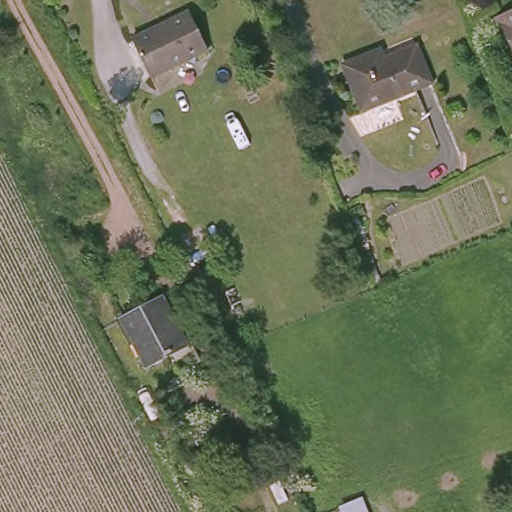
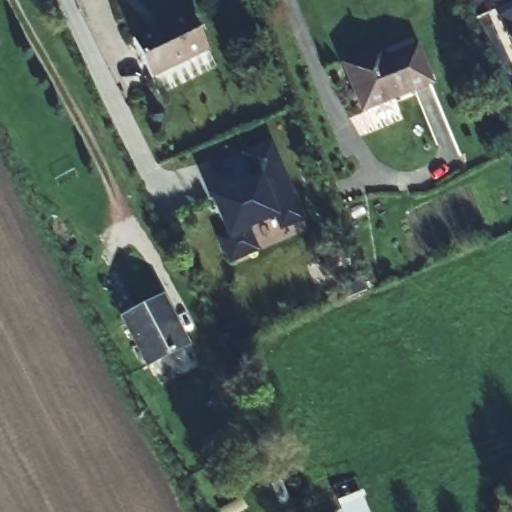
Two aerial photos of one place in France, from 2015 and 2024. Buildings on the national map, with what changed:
unchanged [(512,7),(512,50),(496,16),(512,7)]
unchanged [(202,49),(149,75),(131,38),(185,11),(202,49)]
unchanged [(424,86),(353,107),(339,59),(365,51),(368,59),(413,45),(424,86)]
new [(210,195),(251,177),(241,154),(273,140),(308,221),(281,233),(274,219),(250,229),(259,249),(229,265),(218,239),(227,236),(210,195)]
unchanged [(190,344),(146,367),(120,316),(157,298),(169,322),(178,318),(190,344)]

